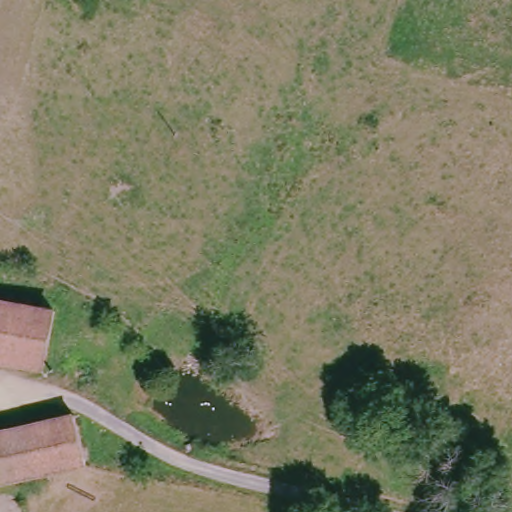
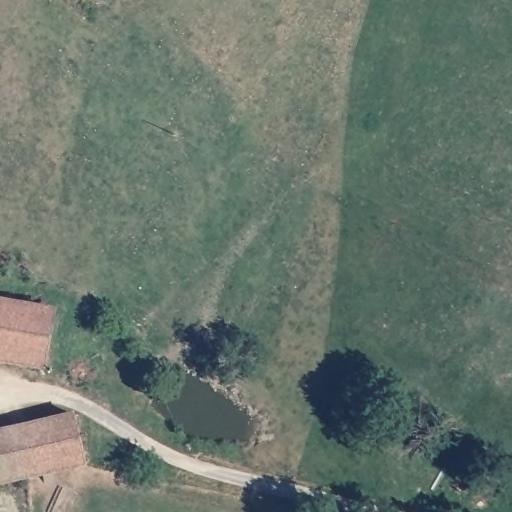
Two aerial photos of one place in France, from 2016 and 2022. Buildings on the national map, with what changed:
unchanged [(0,301),(50,310),(42,361),(0,355),(0,301)]
unchanged [(85,466),(0,482),(0,432),(75,417),(85,466)]

